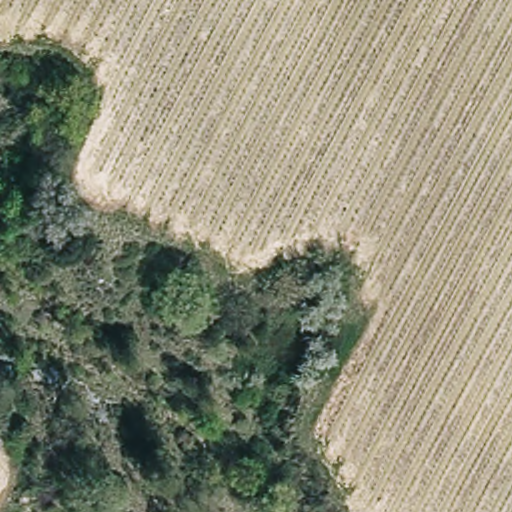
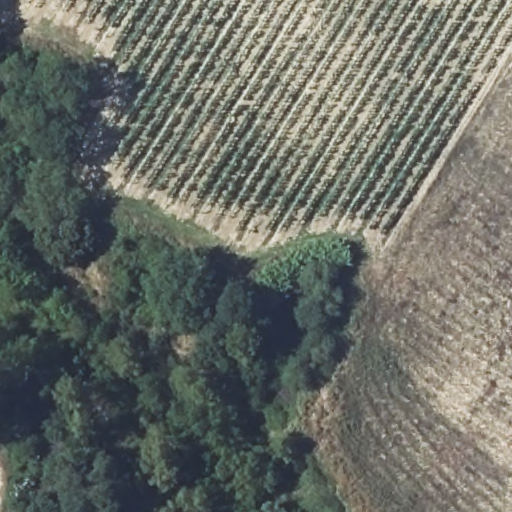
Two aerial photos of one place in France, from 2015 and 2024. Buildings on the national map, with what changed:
[]

